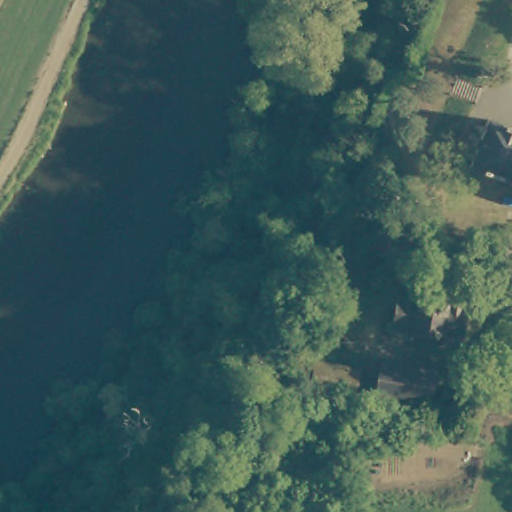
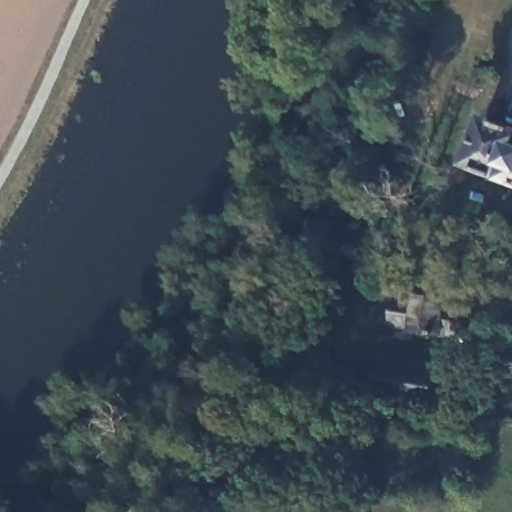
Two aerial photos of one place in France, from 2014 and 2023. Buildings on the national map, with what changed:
unchanged [(508,128),(512,129),(512,184),(464,167),(484,119),(508,128)]
unchanged [(446,340),(447,333),(416,327),(414,336),(393,332),(395,323),(401,294),(420,298),(422,293),(452,298),(451,303),(470,307),(466,333),(464,344),(446,340)]
unchanged [(435,366),(428,406),(374,396),(381,356),(435,366)]
unchanged [(360,369),(355,398),(311,390),(318,360),(360,369)]

